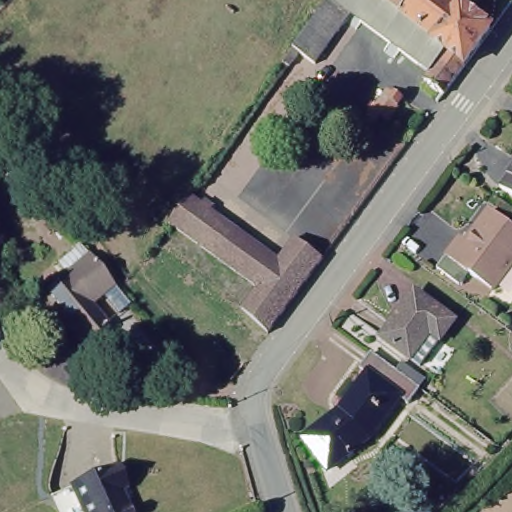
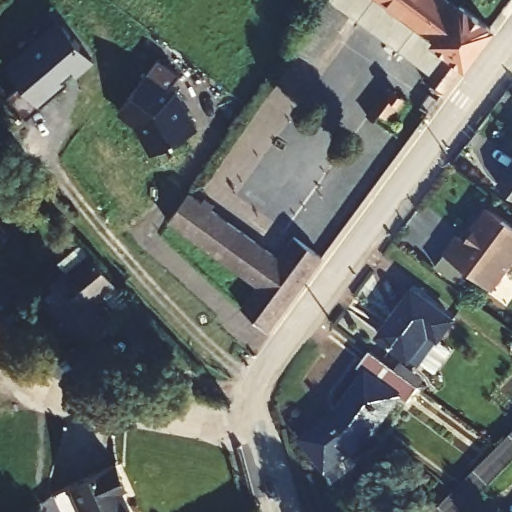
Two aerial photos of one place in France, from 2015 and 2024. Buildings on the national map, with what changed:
unchanged [(316,65),(293,48),(329,0),(335,0),(352,12),(316,65)]
unchanged [(352,12),(335,0),(452,0),(461,7),(463,5),(494,28),(468,65),(447,92),(428,79),(432,71),(418,61),(352,12)]
new [(94,59),(77,74),(73,69),(63,78),(66,81),(25,117),(5,94),(18,84),(3,67),(58,20),(94,59)]
new [(179,70),(171,84),(178,90),(198,126),(151,152),(136,124),(119,111),(158,55),(179,70)]
unchanged [(386,87),(398,96),(383,117),(369,109),(386,87)]
unchanged [(512,188),(503,182),(509,171),(512,167),(512,188)]
unchanged [(238,311),(239,307),(254,286),(166,222),(188,194),(278,257),(294,236),(323,255),(266,331),(258,324),(238,311)]
unchanged [(474,242),(498,211),(512,222),(512,274),(499,291),(478,275),(469,288),(444,270),(454,256),(467,237),(474,242)]
unchanged [(66,268),(69,272),(91,254),(114,282),(92,301),(108,322),(84,341),(42,288),(66,268)]
unchanged [(416,292),(454,320),(439,341),(429,334),(411,359),(381,337),(416,292)]
unchanged [(351,380),(361,366),(408,401),(412,403),(401,417),(392,410),(359,386),(351,380)]
unchanged [(331,425),(359,386),(392,410),(362,450),(319,485),(294,456),(331,425)]
unchanged [(116,466),(126,488),(121,491),(130,512),(84,512),(72,486),(116,466)]

